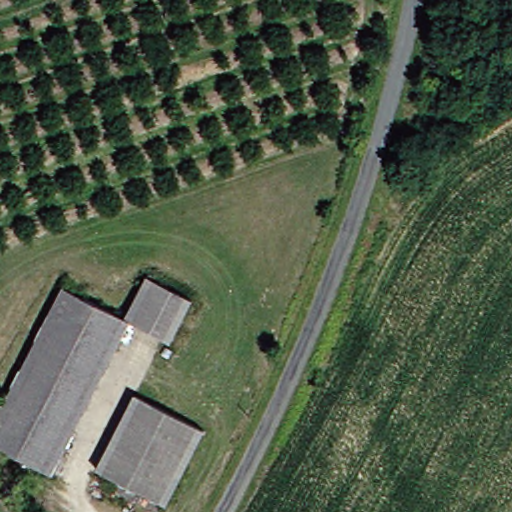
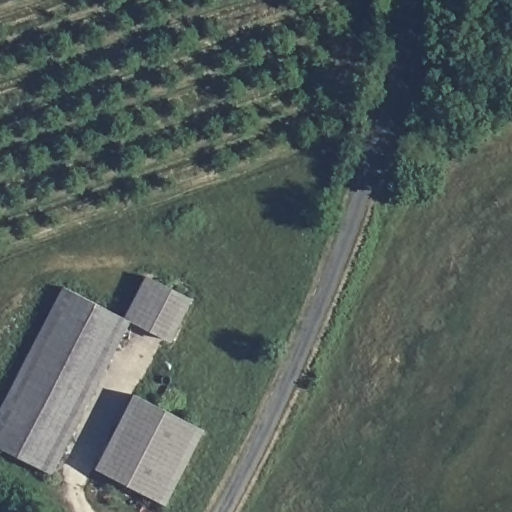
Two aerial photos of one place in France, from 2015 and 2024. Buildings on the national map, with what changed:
unchanged [(143,279),(190,306),(167,350),(125,325),(119,320),(143,279)]
unchanged [(61,292),(119,320),(125,325),(42,474),(0,451),(0,398),(61,292)]
unchanged [(157,507),(91,470),(132,396),(197,433),(157,507)]

